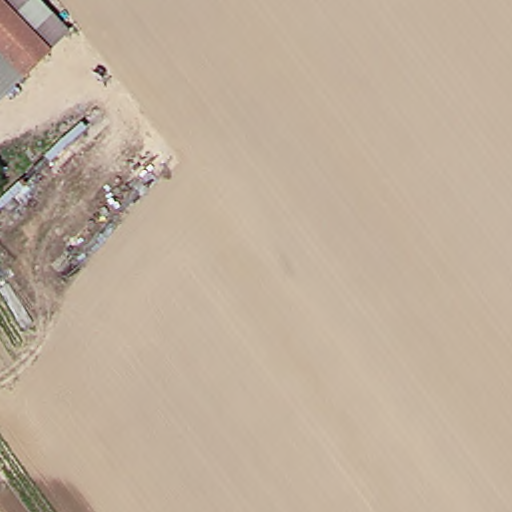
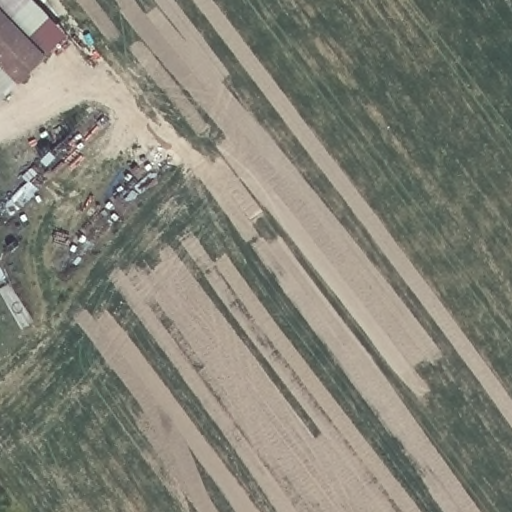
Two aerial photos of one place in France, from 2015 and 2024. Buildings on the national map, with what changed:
unchanged [(42,53),(15,79),(0,93),(0,0),(31,0),(62,33),(42,53)]

